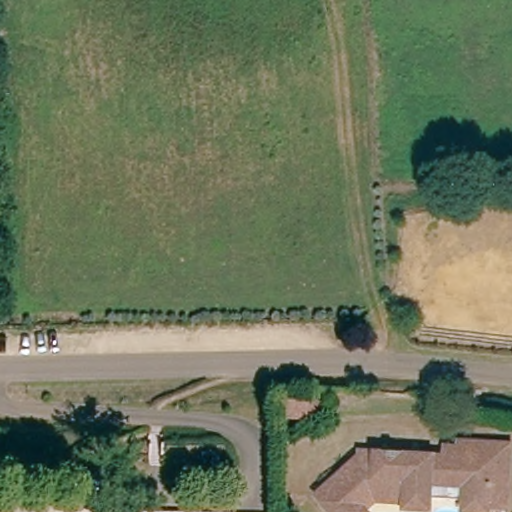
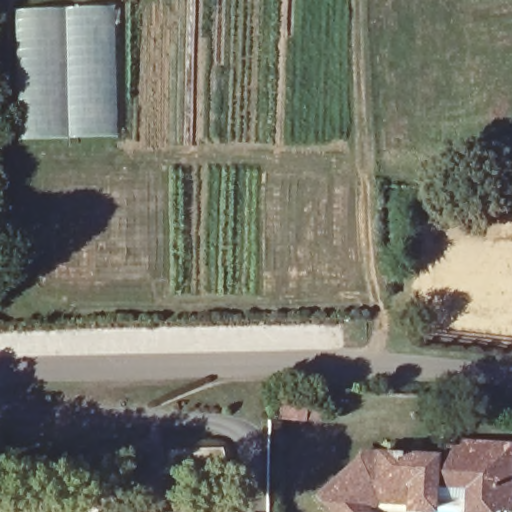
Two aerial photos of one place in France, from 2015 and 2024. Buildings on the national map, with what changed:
new [(116,5),(115,46),(117,136),(67,138),(63,61),(62,6),(116,5)]
new [(15,57),(14,8),(62,6),(63,61),(67,138),(14,139),(13,110),(15,57)]
unchanged [(343,457),(368,459),(368,451),(437,457),(438,448),(452,449),(452,441),(503,446),(501,475),(501,478),(500,503),(483,502),(483,506),(460,507),(461,494),(435,492),(434,504),(408,502),(409,490),(378,487),(359,500),(360,509),(357,512),(330,512),(309,491),(343,457)]

